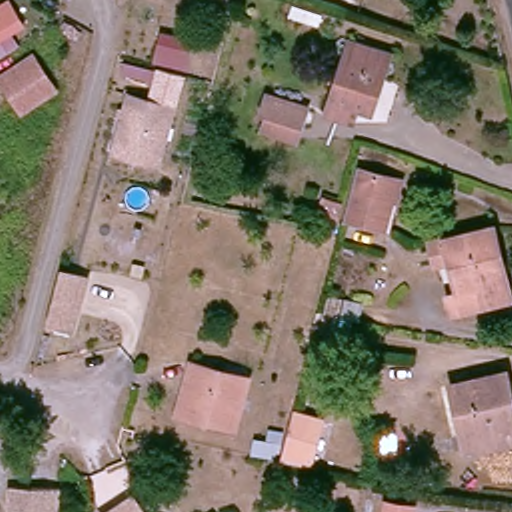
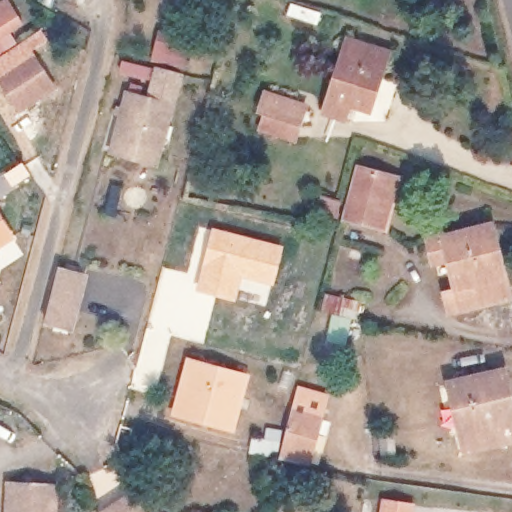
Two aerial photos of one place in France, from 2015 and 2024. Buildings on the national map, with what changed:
unchanged [(18,29),(0,41),(0,7),(2,6),(18,29)]
unchanged [(195,39),(184,69),(155,58),(165,29),(195,39)]
unchanged [(323,114),(326,100),(345,41),(387,56),(369,114),(353,110),(350,122),(323,114)]
unchanged [(15,97),(0,77),(32,55),(46,75),(55,87),(23,110),(15,97)]
unchanged [(114,142),(117,130),(130,86),(174,99),(160,142),(157,155),(114,142)]
unchanged [(296,112),(290,131),(256,119),(264,100),(296,112)]
unchanged [(351,167),(388,180),(375,226),(337,215),(351,167)]
new [(15,238),(0,248),(0,214),(15,238)]
new [(212,226),(285,246),(272,287),(242,280),(235,302),(194,291),(212,226)]
unchanged [(450,311),(446,293),(457,291),(451,261),(434,263),(431,242),(489,232),(496,230),(502,267),(510,302),(450,311)]
unchanged [(47,303),(56,267),(82,274),(69,326),(42,319),(47,303)]
new [(320,311),(325,292),(361,302),(355,320),(346,349),(323,343),(330,313),(320,311)]
unchanged [(184,382),(189,362),(242,378),(227,431),(185,419),(173,416),(184,382)]
unchanged [(444,381),(491,373),(500,372),(510,416),(512,425),(512,437),(460,447),(444,381)]
unchanged [(281,435),(289,408),(320,417),(312,442),(309,458),(277,451),(281,435)]
unchanged [(58,512),(11,512),(15,482),(62,489),(58,512)]
unchanged [(413,512),(385,512),(387,501),(413,507),(413,512)]
unchanged [(117,512),(127,504),(133,512),(117,512)]

